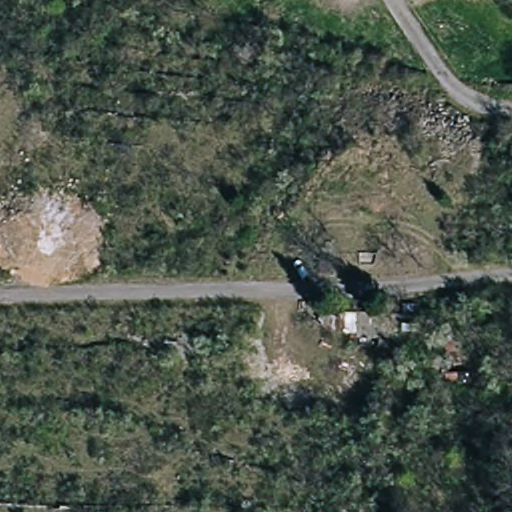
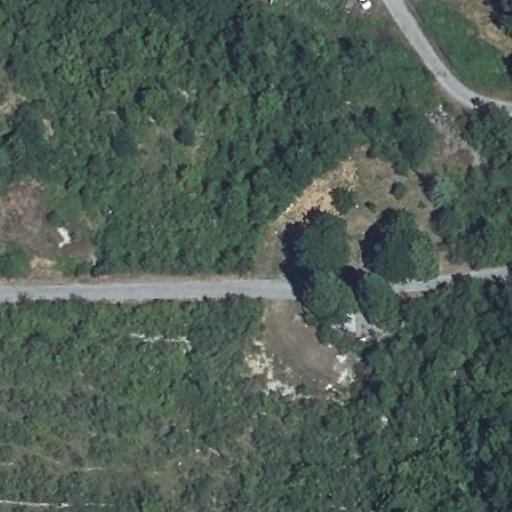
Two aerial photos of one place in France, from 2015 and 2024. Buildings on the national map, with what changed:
unchanged [(338,281),(320,274),(327,257),(345,263),(338,281)]
unchanged [(344,329),(325,324),(330,308),(348,312),(344,329)]
unchanged [(377,508),(393,511),(393,512),(377,512),(377,508)]

